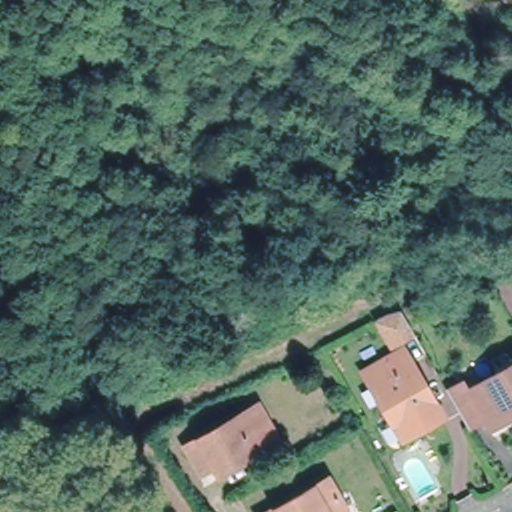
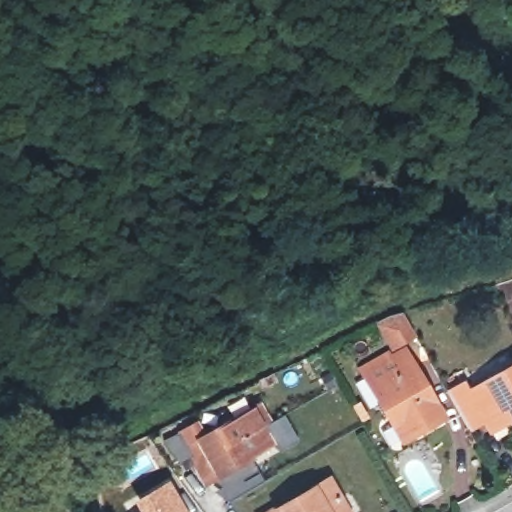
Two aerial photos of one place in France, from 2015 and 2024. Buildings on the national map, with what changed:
unchanged [(399,314),(410,332),(389,344),(377,322),(399,314)]
unchanged [(387,411),(361,371),(400,348),(439,413),(413,427),(402,434),(387,411)]
unchanged [(481,414),(479,413),(466,421),(447,389),(466,377),(473,384),(512,362),(512,408),(510,409),(487,423),(481,414)]
unchanged [(219,469),(206,476),(188,448),(247,413),(258,407),(279,442),(269,447),(223,474),(219,469)]
new [(131,501),(168,479),(187,512),(138,512),(131,501)]
unchanged [(351,511),(349,512),(274,512),(332,481),(351,511)]

